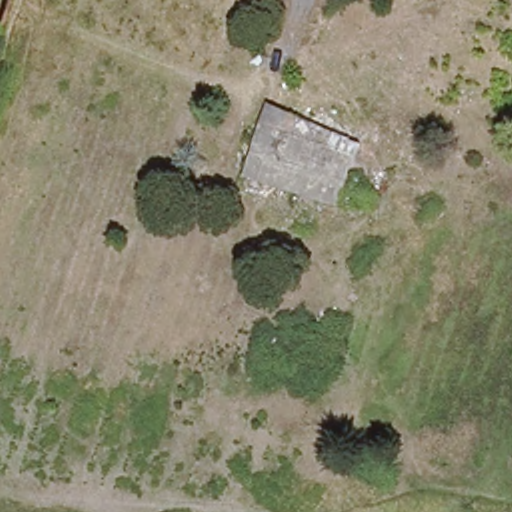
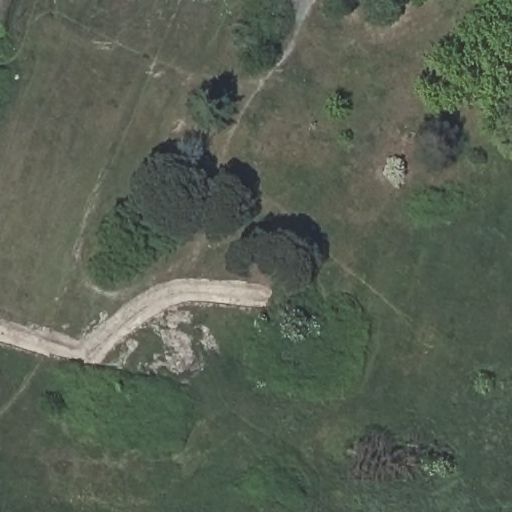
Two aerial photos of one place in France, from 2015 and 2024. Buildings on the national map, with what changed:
demolished [(343,206),(247,177),(269,105),(300,115),(361,144),(343,206)]

